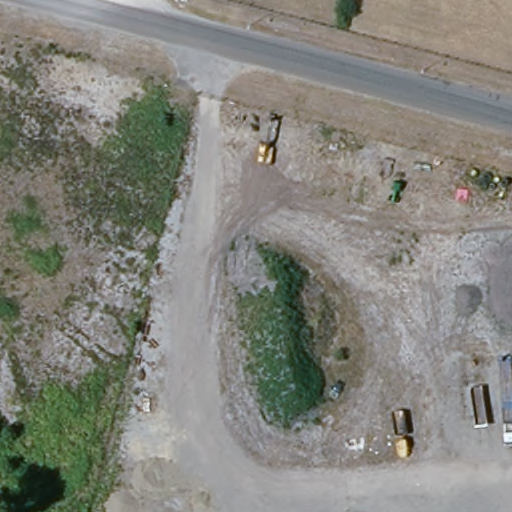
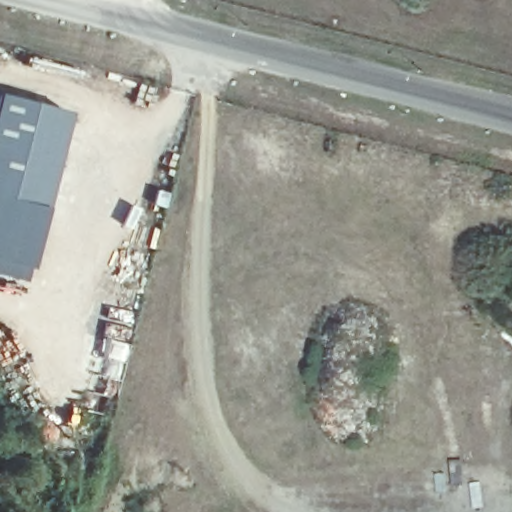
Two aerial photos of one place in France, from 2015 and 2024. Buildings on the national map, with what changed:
new [(75,109),(47,211),(0,199),(0,106),(4,90),(75,109)]
new [(34,263),(0,254),(0,199),(47,211),(34,263)]

